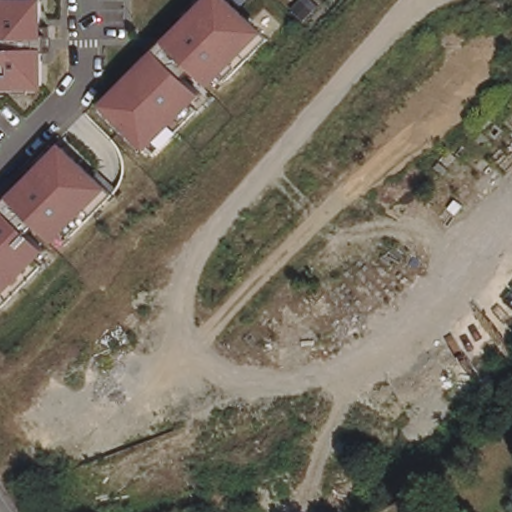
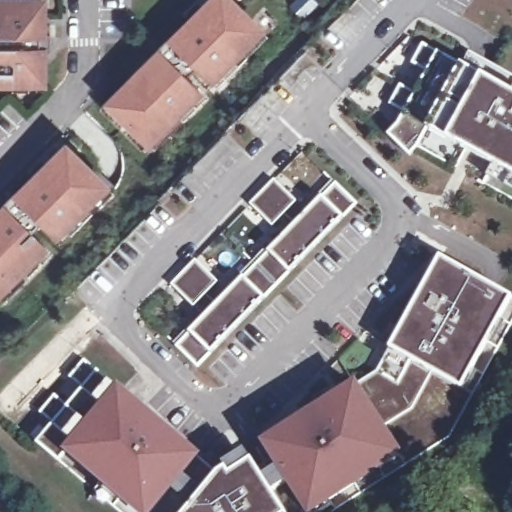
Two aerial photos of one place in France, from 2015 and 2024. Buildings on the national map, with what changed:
unchanged [(43,0),(46,90),(0,90),(0,0),(43,0)]
unchanged [(102,104),(208,0),(231,0),(265,33),(149,148),(102,104)]
new [(494,165),(428,128),(418,147),(409,155),(389,135),(398,125),(404,115),(398,108),(391,104),(401,86),(418,95),(431,73),(413,63),(423,45),(512,94),(512,189),(489,176),(494,165)]
unchanged [(0,298),(0,207),(63,140),(111,186),(0,298)]
new [(274,180),(296,201),(273,226),(250,204),(274,180)]
new [(336,183),(357,204),(198,367),(176,346),(336,183)]
new [(511,296),(461,389),(389,349),(441,257),(511,296)]
new [(196,260),(218,282),(194,307),(171,285),(196,260)]
new [(512,320),(449,437),(330,512),(317,512),(404,456),(358,383),(378,370),(389,349),(461,389),(511,296),(512,297),(512,320)]
new [(118,388),(68,450),(59,461),(38,442),(52,424),(39,411),(54,393),(68,405),(83,388),(70,377),(84,361),(118,388)]
new [(404,456),(317,512),(304,512),(261,445),(358,383),(404,456)]
new [(201,457),(156,512),(141,512),(103,480),(68,450),(118,388),(124,392),(201,457)]
new [(246,455),(261,445),(304,512),(283,512),(246,455)]
new [(283,512),(185,512),(218,472),(246,455),(283,512)]
new [(201,457),(218,472),(185,512),(156,512),(201,457)]
new [(94,491),(103,480),(141,512),(119,512),(94,491)]

